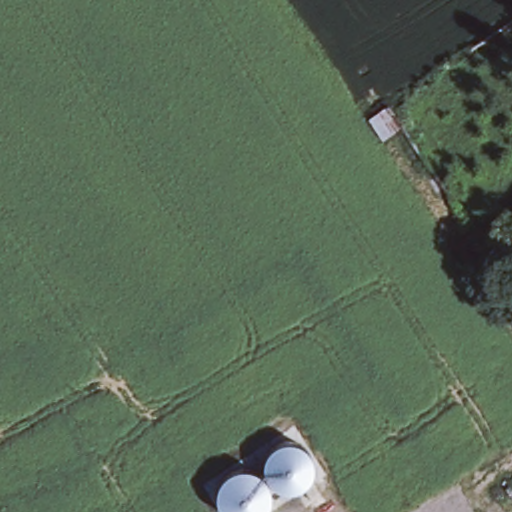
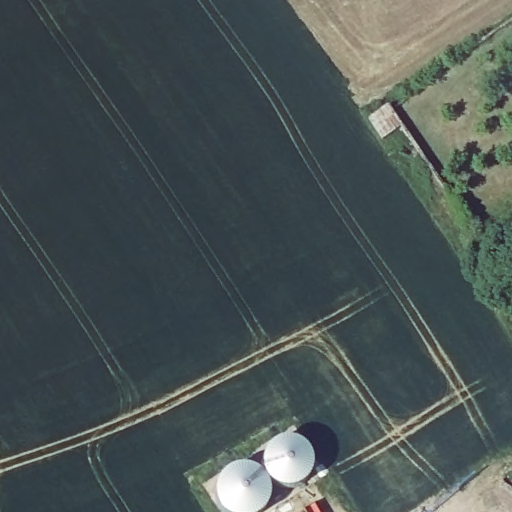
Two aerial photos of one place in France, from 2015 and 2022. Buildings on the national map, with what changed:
unchanged [(264,512),(224,512),(223,511),(218,505),(216,500),(215,496),(215,493),(216,487),(218,481),(221,478),(226,473),(272,446),(277,442),(282,440),(288,440),(295,442),(301,444),(306,447),(310,453),(312,455),(313,460),(313,465),(313,470),(312,476),(309,480),(300,487),(267,509),(264,512)]

